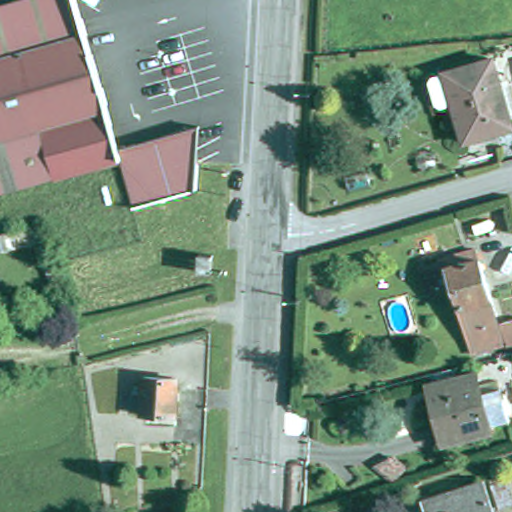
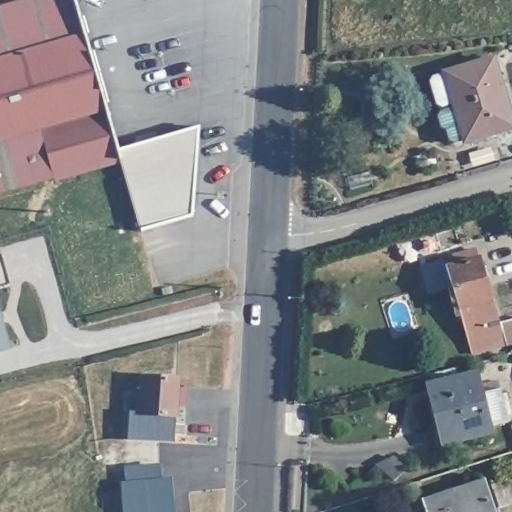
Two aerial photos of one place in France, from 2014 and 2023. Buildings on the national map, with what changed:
unchanged [(131,211),(117,164),(0,196),(0,8),(31,0),(72,0),(115,153),(196,130),(189,194),(131,211)]
unchanged [(512,118),(512,126),(466,139),(454,101),(437,106),(429,75),(445,70),(445,71),(494,57),(512,118)]
unchanged [(201,252),(215,252),(214,271),(200,270),(201,252)]
new [(0,287),(0,255),(2,254),(11,285),(0,287)]
unchanged [(474,357),(471,345),(454,287),(440,291),(439,286),(425,289),(420,271),(447,263),(446,261),(471,254),(474,263),(480,262),(502,336),(501,337),(504,347),(474,357)]
new [(0,315),(0,313),(1,315),(0,315)]
new [(10,350),(0,352),(0,322),(2,321),(10,350)]
unchanged [(132,393),(145,395),(146,376),(177,378),(176,413),(144,411),(131,410),(132,393)]
unchanged [(474,397),(491,392),(499,423),(482,428),(482,434),(435,446),(421,388),(468,376),(474,397)]
new [(128,482),(132,482),(131,467),(163,465),(164,481),(174,480),(177,508),(177,512),(130,512),(128,482)]
unchanged [(512,493),(512,495),(495,502),(487,478),(505,472),(512,493)]
unchanged [(481,477),(492,512),(427,512),(422,497),(481,477)]

